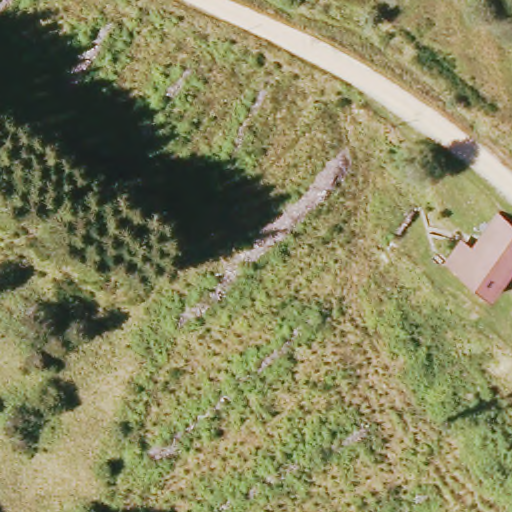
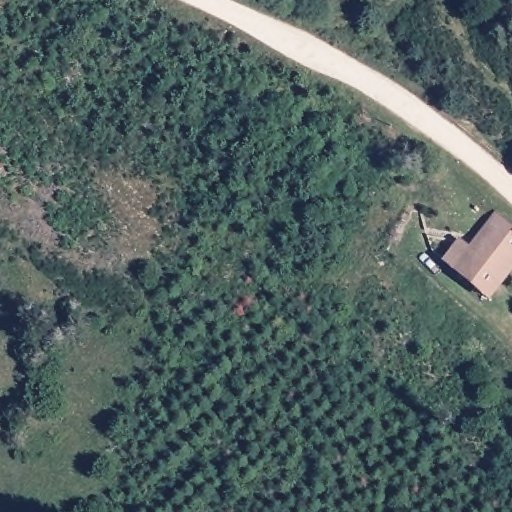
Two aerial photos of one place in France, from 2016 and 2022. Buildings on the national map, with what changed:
unchanged [(472,245),(499,209),(512,220),(512,270),(491,297),(443,252),(460,232),(472,245)]

